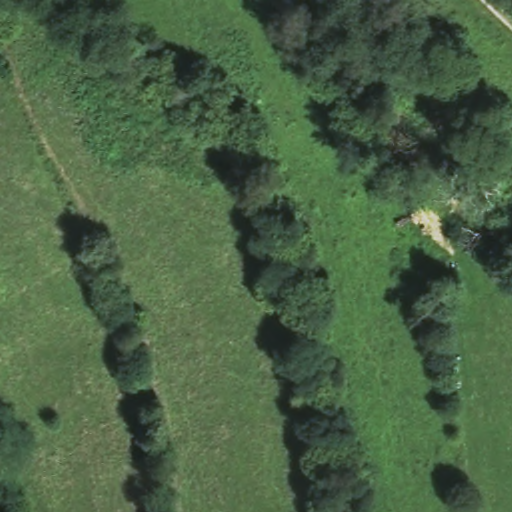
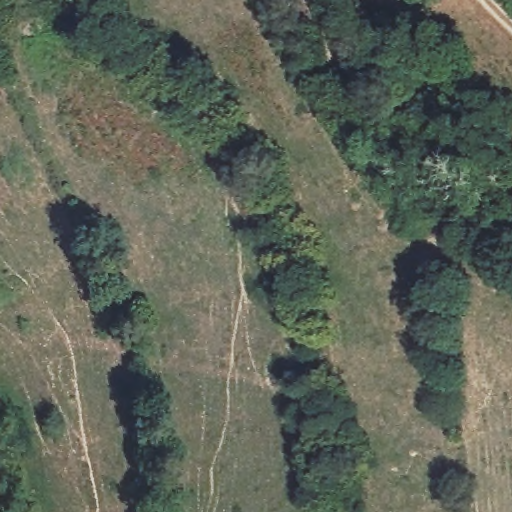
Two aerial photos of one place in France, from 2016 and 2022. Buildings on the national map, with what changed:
[]

